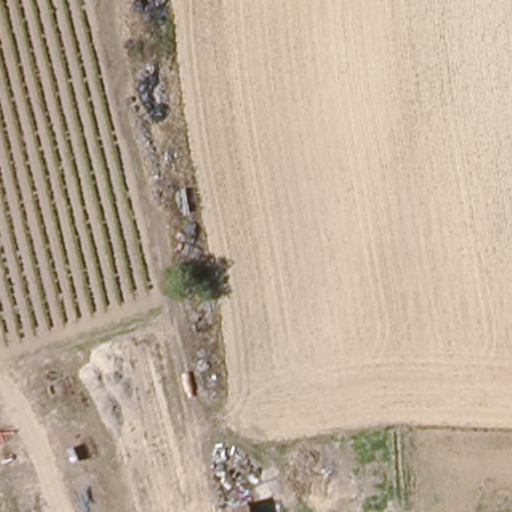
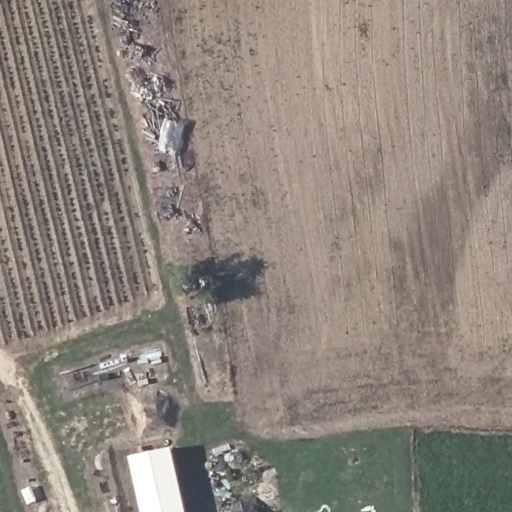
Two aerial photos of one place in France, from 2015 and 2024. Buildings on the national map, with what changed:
new [(143,512),(131,458),(173,449),(187,512),(143,512)]
unchanged [(257,506),(258,512),(232,512),(241,510),(257,506)]

